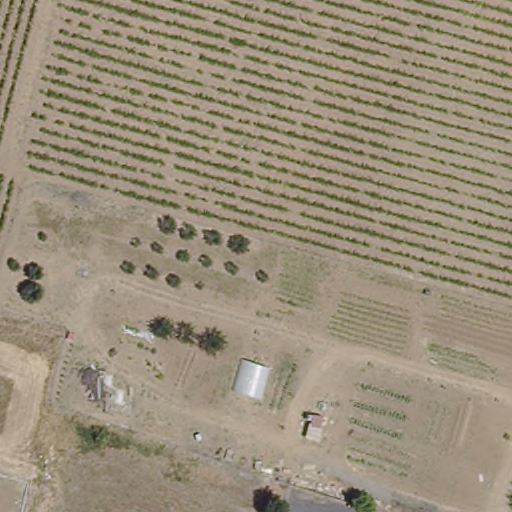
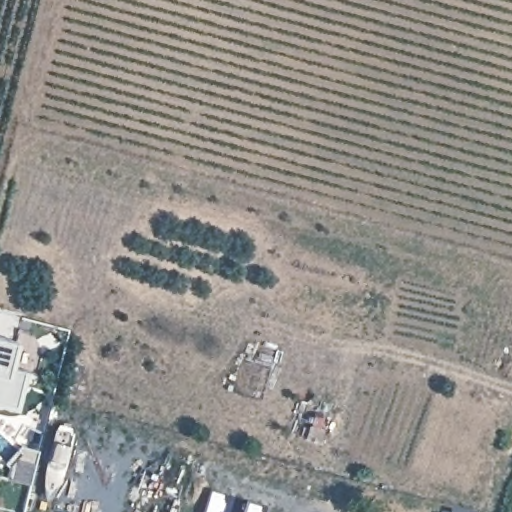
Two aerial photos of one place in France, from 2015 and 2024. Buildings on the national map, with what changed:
new [(21,343),(16,366),(30,370),(18,408),(0,403),(0,337),(21,343)]

